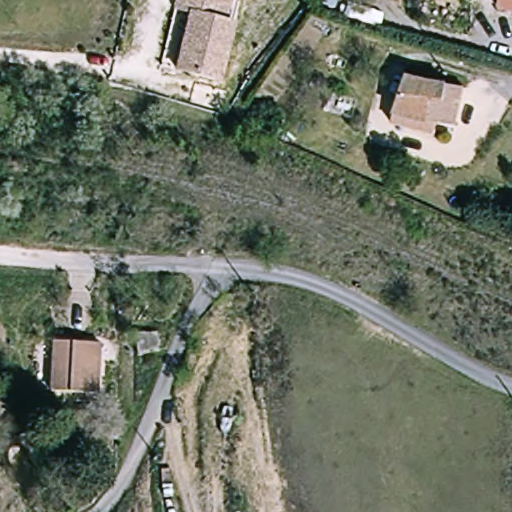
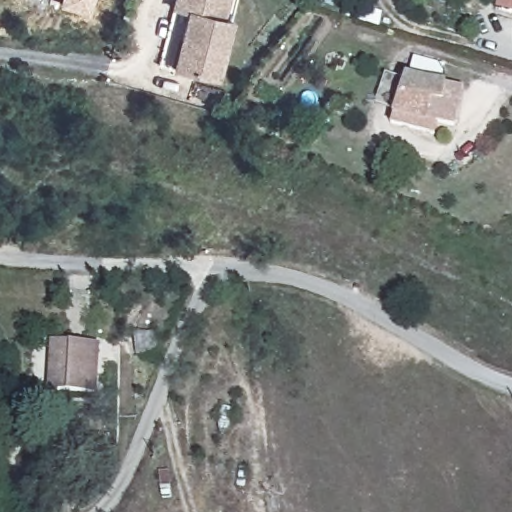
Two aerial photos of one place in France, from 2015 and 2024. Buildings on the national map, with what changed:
new [(88,15),(58,6),(60,0),(93,0),(88,15)]
unchanged [(220,19),(230,23),(209,79),(167,64),(187,9),(172,4),(174,0),(228,0),(220,19)]
unchanged [(506,0),(512,0),(512,5),(505,3),(506,0)]
unchanged [(397,119),(399,107),(407,72),(461,83),(454,118),(441,115),(439,128),(397,119)]
unchanged [(60,340),(106,347),(97,397),(52,390),(60,340)]

